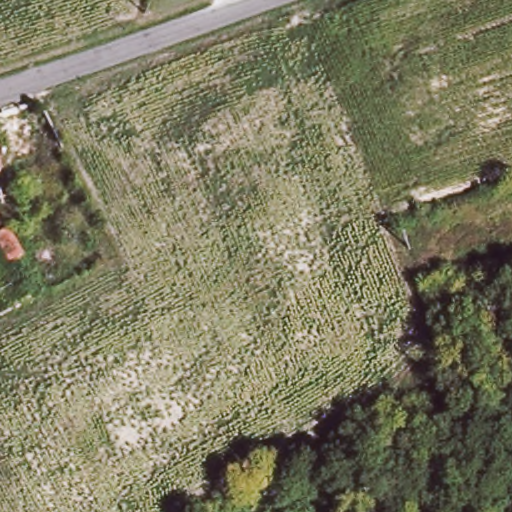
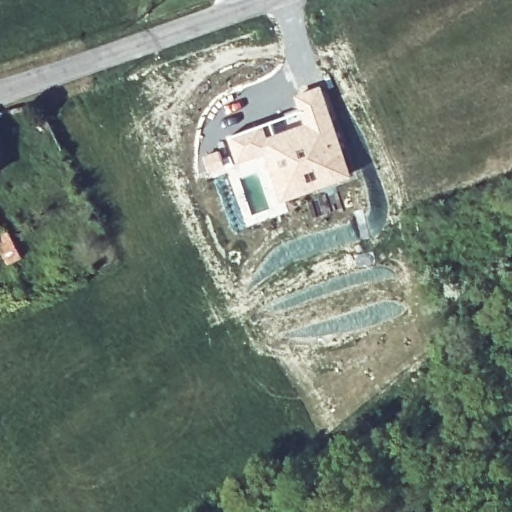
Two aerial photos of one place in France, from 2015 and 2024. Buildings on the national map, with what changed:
new [(299,109),(294,95),(322,84),(356,174),(285,201),(265,154),(236,165),(226,136),(299,109)]
unchanged [(10,267),(0,247),(0,237),(8,233),(22,262),(10,267)]

